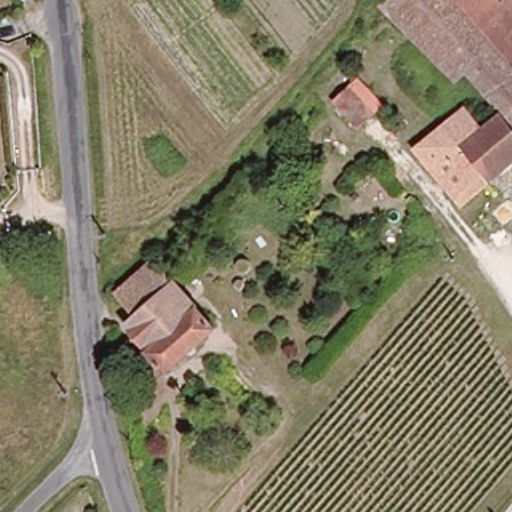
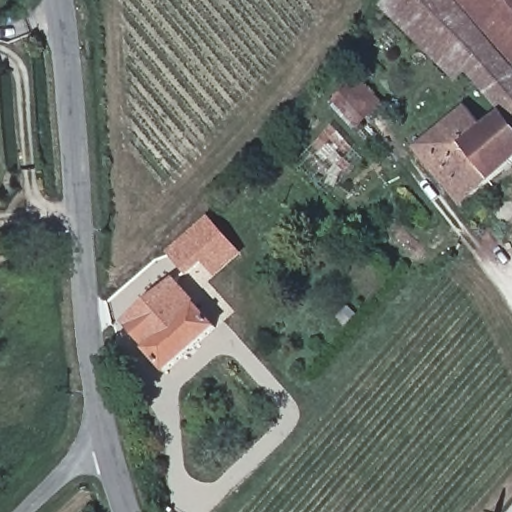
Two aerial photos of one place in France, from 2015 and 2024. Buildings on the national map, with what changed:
unchanged [(512,72),(512,122),(498,107),(460,67),(451,75),(440,63),(382,0),(431,0),(452,0),(507,67),(512,72)]
unchanged [(452,0),(512,0),(512,62),(507,67),(452,0)]
unchanged [(330,101),(348,85),(371,110),(352,126),(330,101)]
unchanged [(512,156),(488,176),(487,175),(458,200),(429,165),(427,163),(422,167),(412,155),(422,146),(416,137),(440,117),(462,99),(481,122),(496,110),(512,127),(512,156)]
new [(216,277),(204,264),(188,278),(167,253),(209,217),(242,254),(216,277)]
unchanged [(145,318),(121,295),(153,262),(177,285),(145,318)]
unchanged [(220,326),(174,374),(154,354),(157,350),(134,328),(145,318),(177,285),(220,326)]

